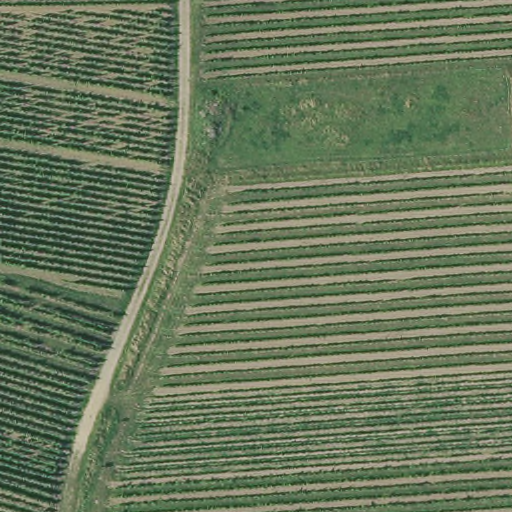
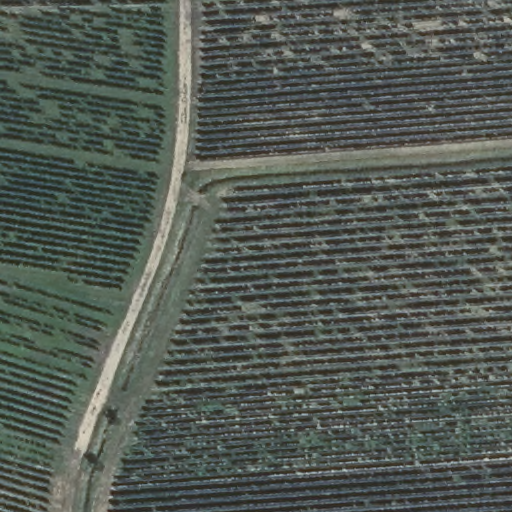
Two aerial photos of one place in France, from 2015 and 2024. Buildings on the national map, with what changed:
[]

